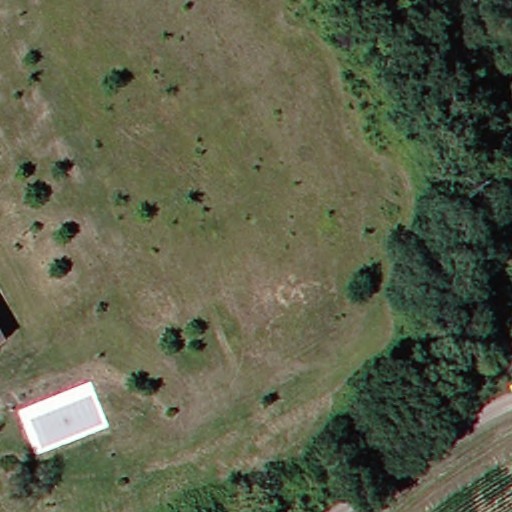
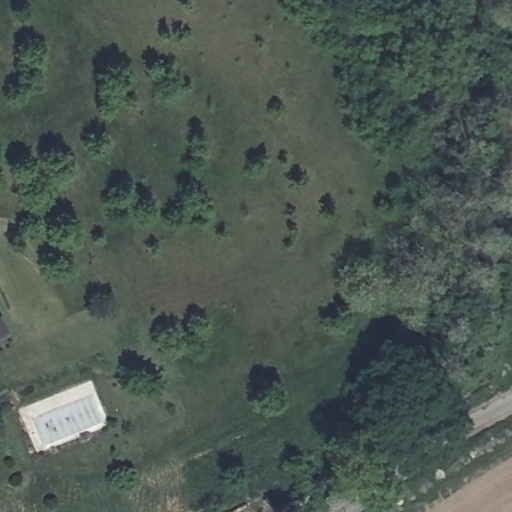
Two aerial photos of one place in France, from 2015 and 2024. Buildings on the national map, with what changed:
unchanged [(0,343),(0,321),(9,338),(0,343)]

